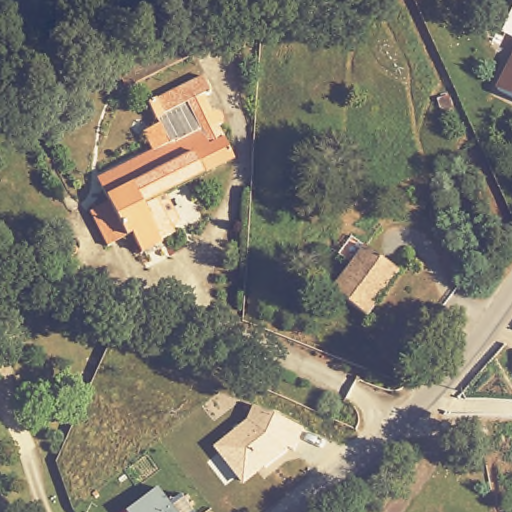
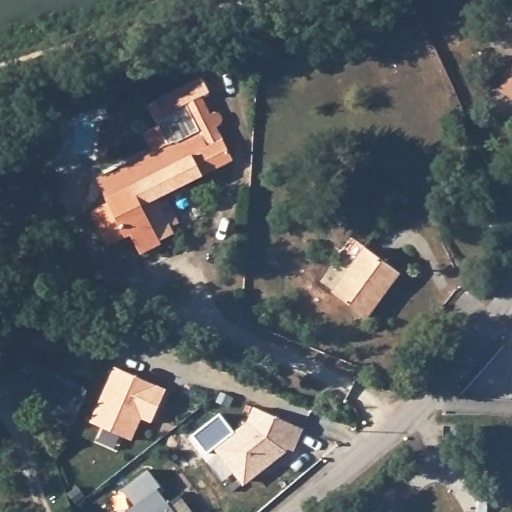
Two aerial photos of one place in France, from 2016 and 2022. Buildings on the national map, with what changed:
unchanged [(512,73),(512,100),(501,94),(512,73)]
unchanged [(152,109),(205,79),(213,93),(204,98),(212,114),(217,114),(221,115),(224,119),(224,123),(222,127),(221,129),(237,159),(161,204),(179,237),(147,254),(137,237),(112,250),(95,219),(115,209),(107,197),(111,194),(105,183),(162,151),(152,133),(161,127),(152,109)]
unchanged [(336,298),(370,253),(400,275),(378,304),(383,307),(371,323),(336,298)]
new [(104,428),(90,422),(115,367),(166,389),(154,423),(141,418),(132,441),(119,435),(114,449),(97,442),(104,428)]
unchanged [(247,422),(254,408),(304,428),(293,453),(286,449),(282,457),(244,487),(213,449),(247,422)]
unchanged [(156,487),(169,502),(179,496),(193,512),(125,512),(156,487)]

